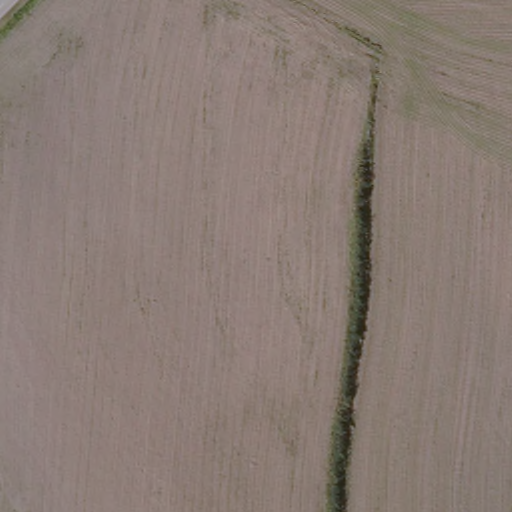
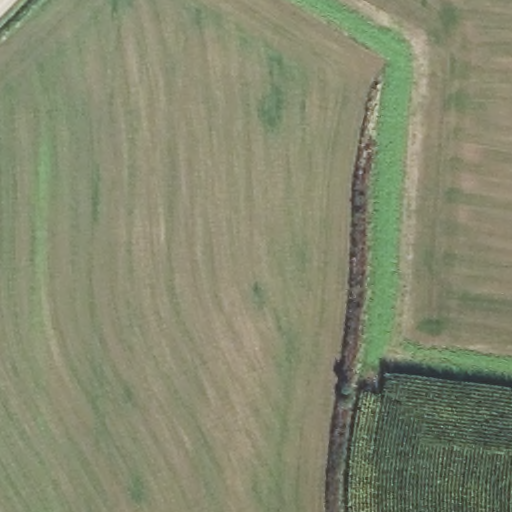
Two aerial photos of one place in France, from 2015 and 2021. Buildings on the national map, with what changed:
[]

